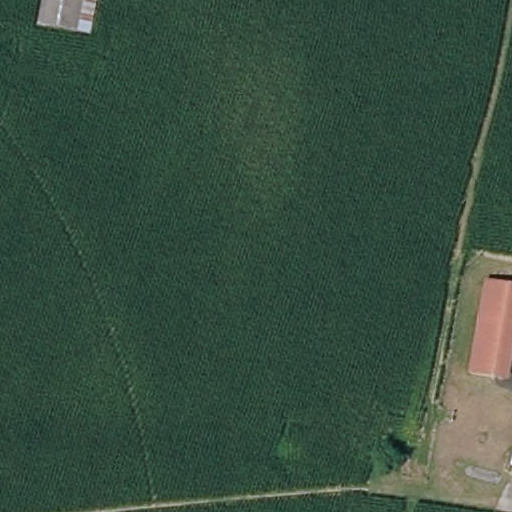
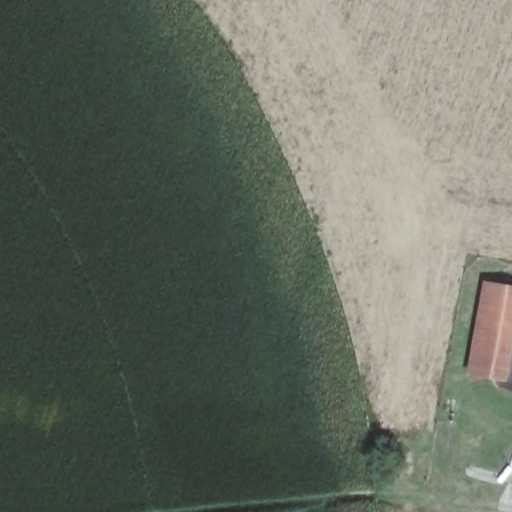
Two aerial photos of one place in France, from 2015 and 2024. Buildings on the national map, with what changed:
demolished [(39,26),(44,0),(98,0),(92,34),(39,26)]
unchanged [(510,383),(470,374),(487,286),(512,290),(512,366),(510,383)]

